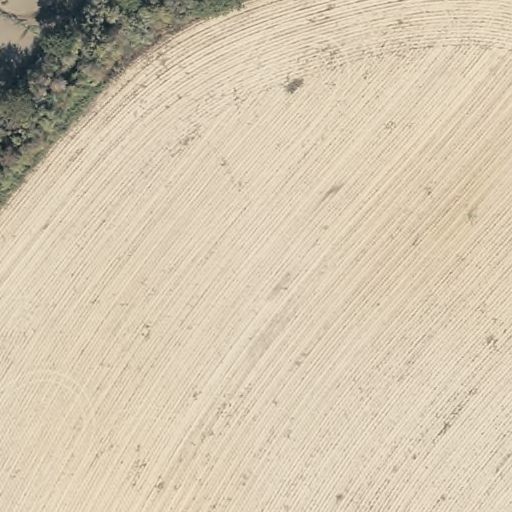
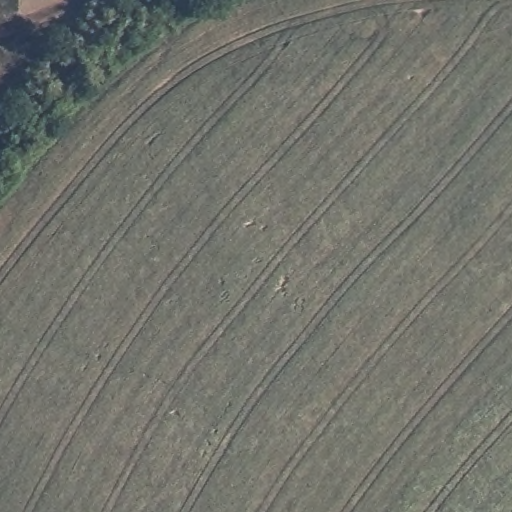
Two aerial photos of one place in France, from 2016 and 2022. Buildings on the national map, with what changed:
[]

